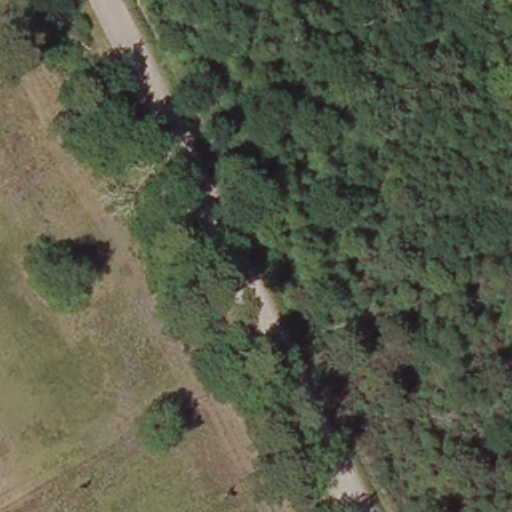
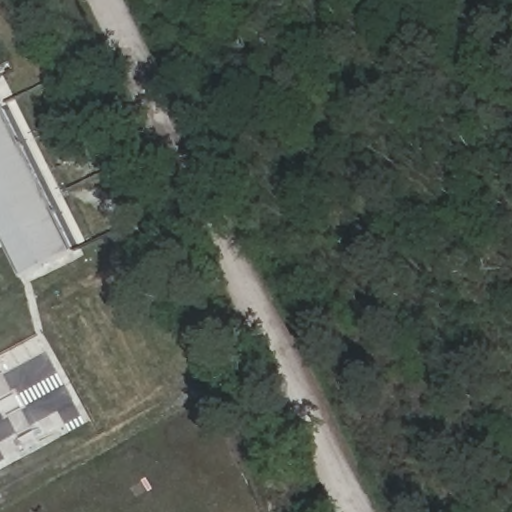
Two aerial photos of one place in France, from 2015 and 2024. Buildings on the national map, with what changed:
new [(75,251),(71,252),(44,266),(22,277),(20,278),(5,245),(0,247),(0,106),(2,105),(75,251)]

